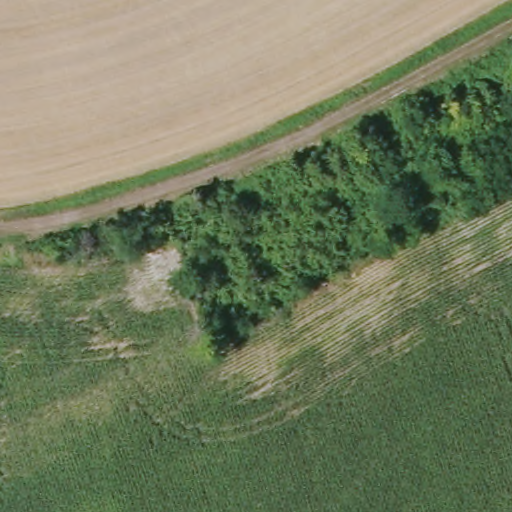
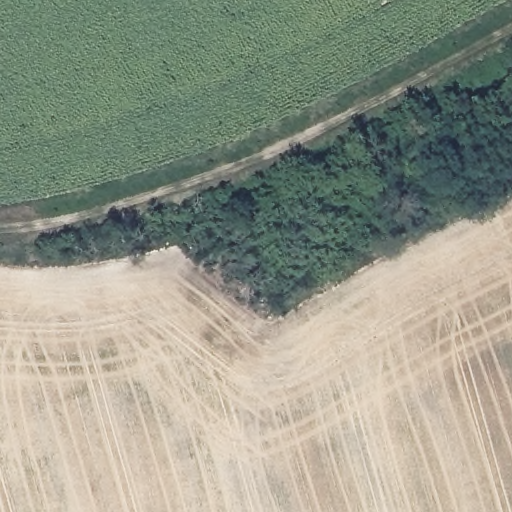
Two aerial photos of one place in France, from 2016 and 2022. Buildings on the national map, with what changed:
unchanged [(231,320),(238,331),(222,340),(215,327),(231,320)]

